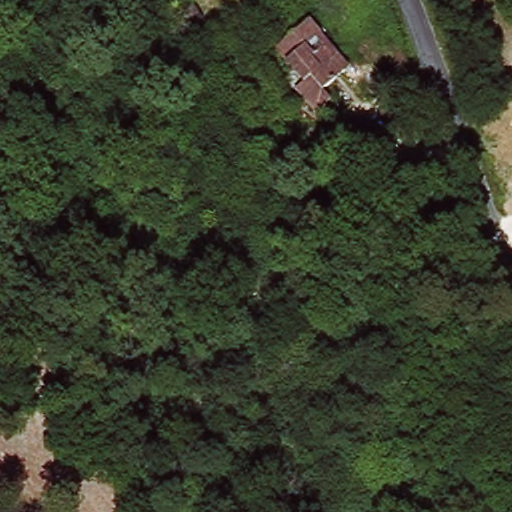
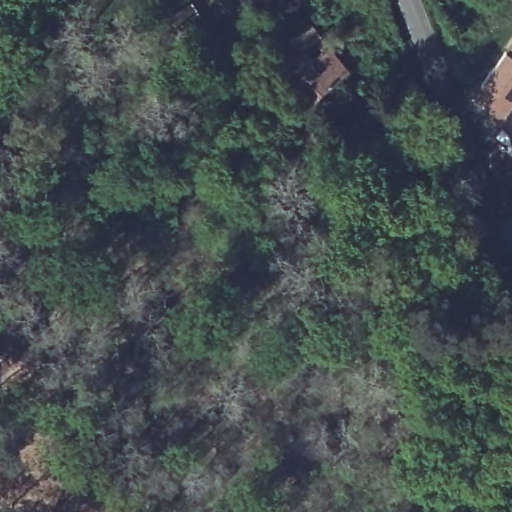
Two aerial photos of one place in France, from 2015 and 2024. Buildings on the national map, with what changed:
unchanged [(316,117),(298,95),(307,88),(278,55),(312,25),(325,40),(350,72),(344,77),(323,95),(331,105),(316,117)]
new [(504,51),(512,57),(512,99),(497,120),(491,115),(480,84),(504,51)]

